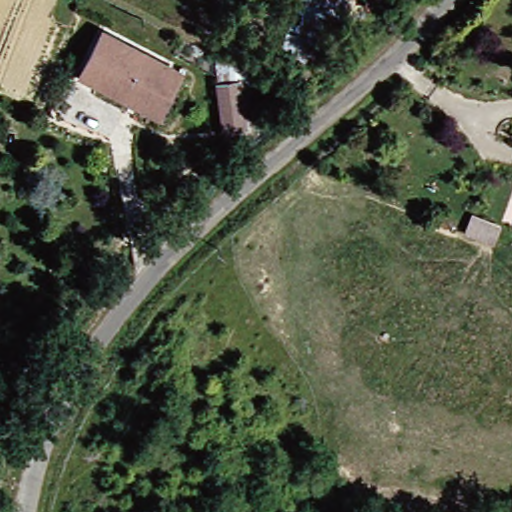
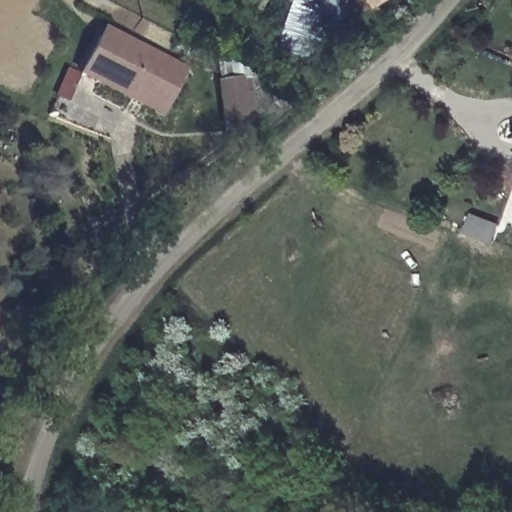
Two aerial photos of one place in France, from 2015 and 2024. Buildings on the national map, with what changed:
unchanged [(296,0),(339,0),(318,63),(277,50),(296,0)]
unchanged [(93,34),(170,72),(152,108),(89,77),(86,83),(72,76),(93,34)]
unchanged [(234,83),(236,98),(242,98),(245,116),(239,116),(240,128),(221,131),(215,86),(234,83)]

